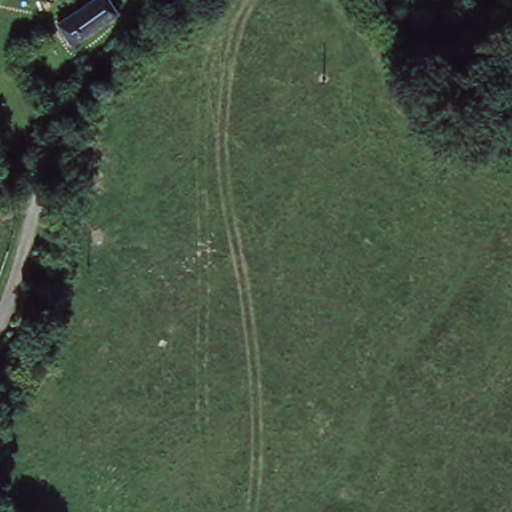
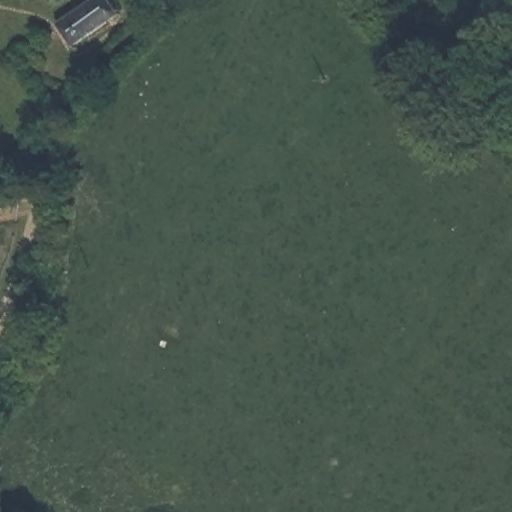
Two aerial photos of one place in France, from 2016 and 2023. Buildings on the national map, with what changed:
unchanged [(116,0),(122,8),(70,47),(57,23),(89,0),(116,0)]

